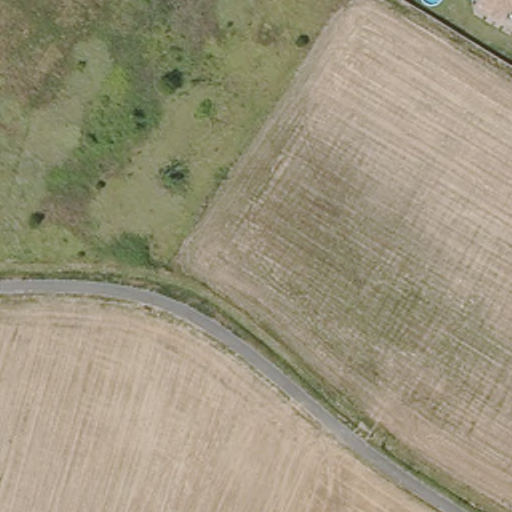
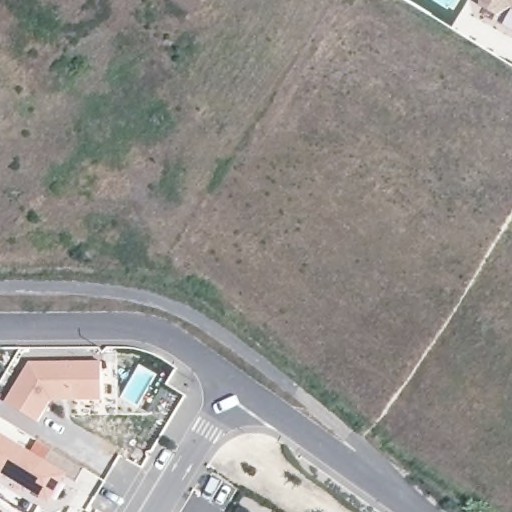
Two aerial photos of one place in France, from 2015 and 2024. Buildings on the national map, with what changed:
unchanged [(484,0),(512,0),(512,3),(501,9),(484,0)]
new [(28,362),(102,362),(103,402),(52,402),(38,423),(5,402),(28,362)]
new [(45,460),(51,447),(83,467),(76,481),(66,475),(49,502),(2,474),(0,477),(0,431),(45,460)]

